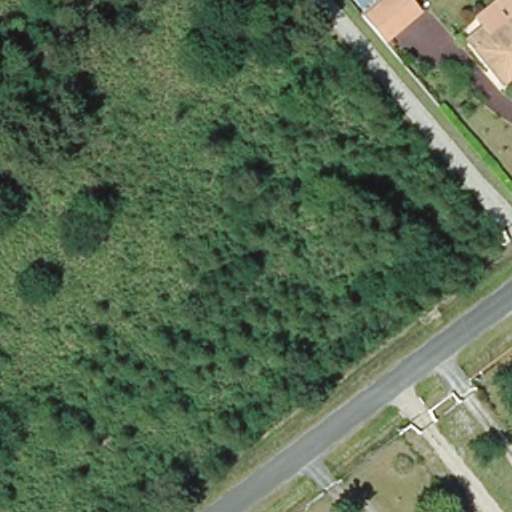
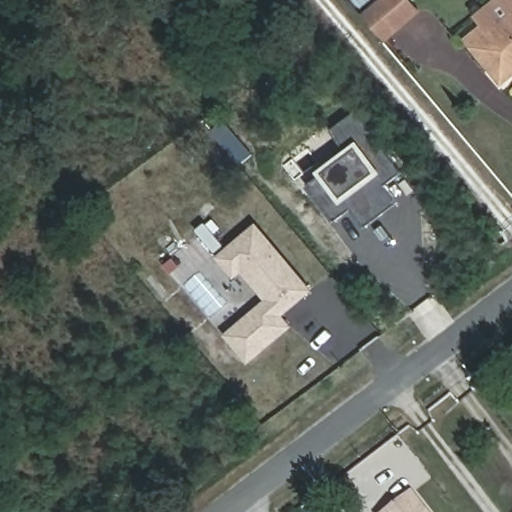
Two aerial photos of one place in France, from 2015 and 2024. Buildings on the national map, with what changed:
unchanged [(387,42),(363,14),(379,0),(411,0),(422,12),(387,42)]
unchanged [(502,80),(469,40),(512,6),(512,73),(502,80)]
new [(347,151),(332,130),(358,111),(400,172),(384,184),(397,202),(364,226),(352,208),(334,221),(308,184),(321,174),(347,151)]
new [(239,270),(231,276),(215,256),(255,222),(312,290),(282,315),(291,326),(247,363),(223,335),(264,300),(239,270)]
new [(384,512),(413,488),(432,512),(384,512)]

